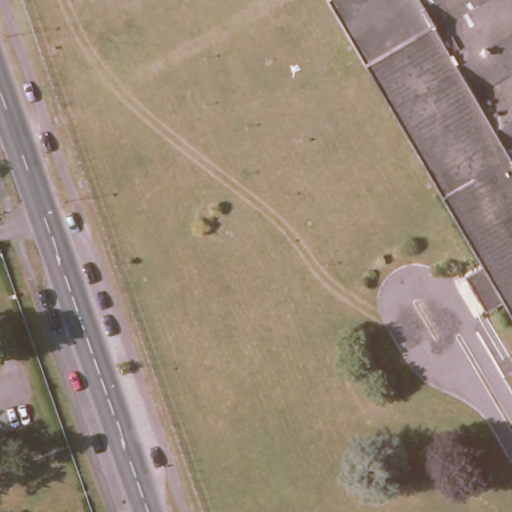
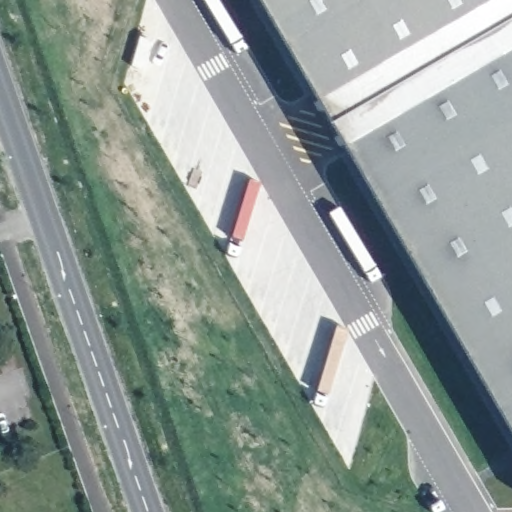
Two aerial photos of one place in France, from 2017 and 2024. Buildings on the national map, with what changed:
new [(255,0),(512,0),(512,442),(255,0)]
demolished [(356,39),(334,0),(430,0),(512,141),(439,183),(356,39)]
demolished [(430,0),(512,0),(512,142),(512,141),(430,0)]
demolished [(464,267),(482,258),(439,183),(512,141),(512,142),(512,311),(501,292),(485,302),(464,267)]

